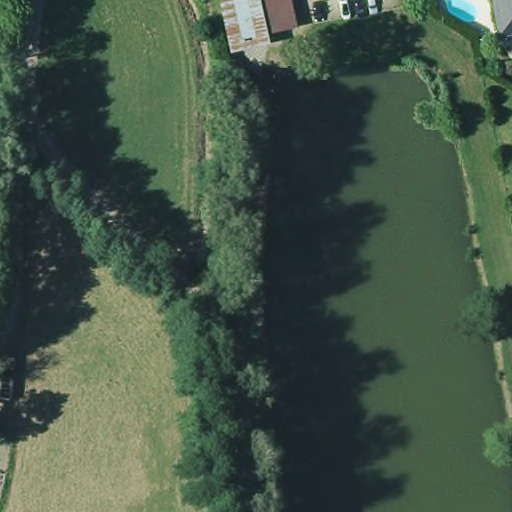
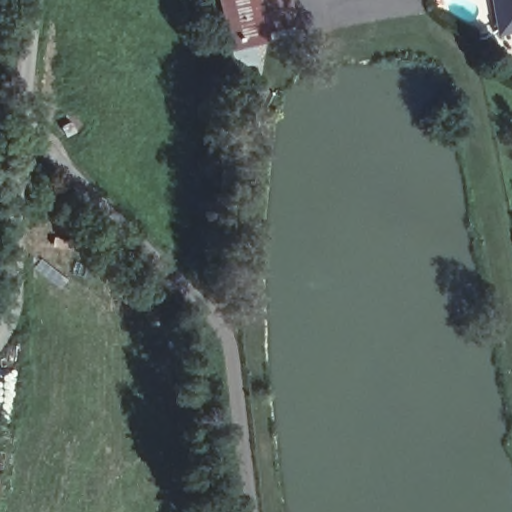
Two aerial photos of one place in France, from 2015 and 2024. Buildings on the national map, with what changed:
unchanged [(269,29),(270,43),(232,49),(221,0),(294,0),(299,24),(269,29)]
unchanged [(492,0),(512,0),(512,33),(498,36),(492,0)]

